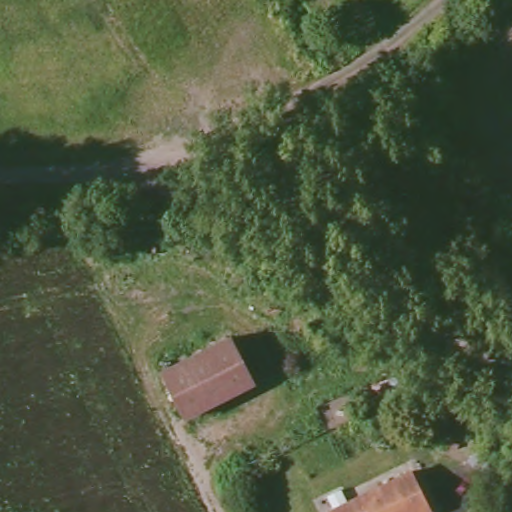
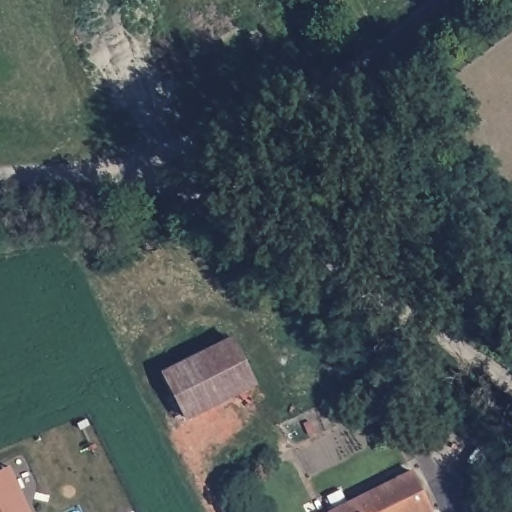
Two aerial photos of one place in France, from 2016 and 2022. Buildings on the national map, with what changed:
unchanged [(234,342),(257,388),(191,422),(168,377),(234,342)]
unchanged [(496,486),(477,471),(467,463),(480,447),(490,455),(508,470),(496,486)]
new [(9,466),(30,512),(0,512),(0,469),(9,466)]
unchanged [(431,512),(331,512),(413,473),(431,512)]

